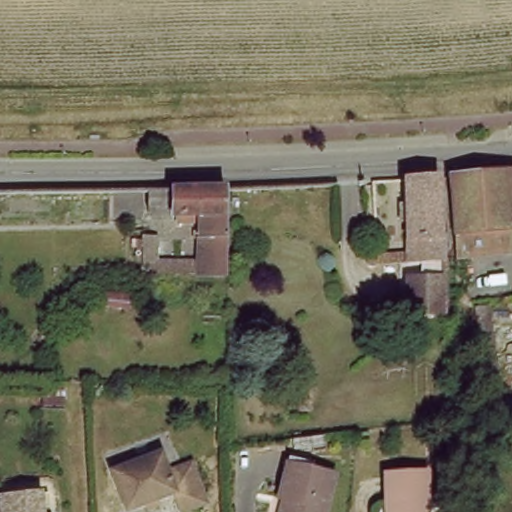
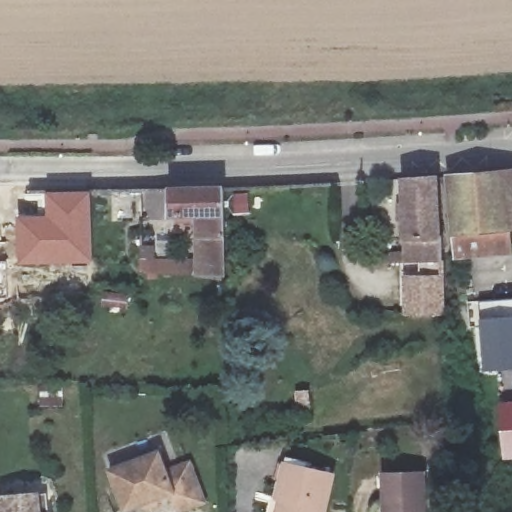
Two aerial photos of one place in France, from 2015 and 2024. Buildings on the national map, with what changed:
unchanged [(457,262),(450,184),(505,179),(510,258),(457,262)]
unchanged [(441,241),(446,244),(446,266),(424,268),(409,269),(403,187),(437,184),(441,241)]
unchanged [(197,213),(171,212),(170,188),(223,187),(224,270),(198,271),(198,257),(197,213)]
new [(17,214),(43,213),(42,201),(25,199),(25,193),(93,189),(93,264),(16,264),(17,214)]
unchanged [(198,271),(138,271),(138,235),(153,235),(153,257),(198,257),(198,271)]
unchanged [(446,266),(446,307),(446,317),(412,319),(409,282),(425,280),(424,268),(446,266)]
new [(101,288),(131,290),(128,309),(100,306),(101,288)]
new [(512,303),(512,373),(479,374),(476,323),(482,322),(482,304),(512,303)]
unchanged [(512,403),(512,457),(505,457),(503,404),(512,403)]
unchanged [(165,453),(170,472),(195,464),(206,505),(183,512),(181,512),(175,493),(126,507),(115,467),(165,453)]
unchanged [(309,476),(332,482),(325,512),(280,512),(281,507),(275,506),(284,464),(310,469),(309,476)]
unchanged [(424,512),(385,512),(386,478),(424,479),(424,512)]
unchanged [(7,502),(36,500),(45,499),(47,512),(8,512),(7,502)]

